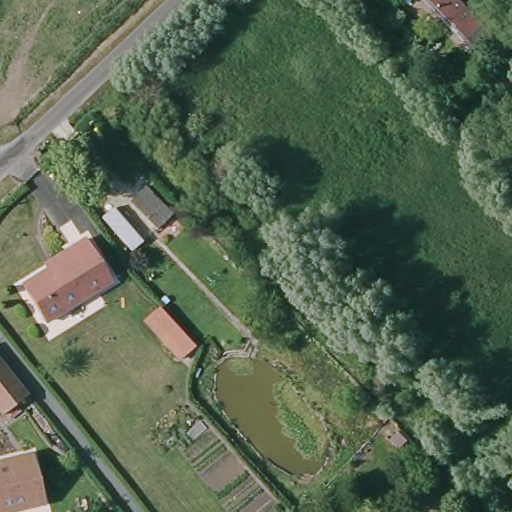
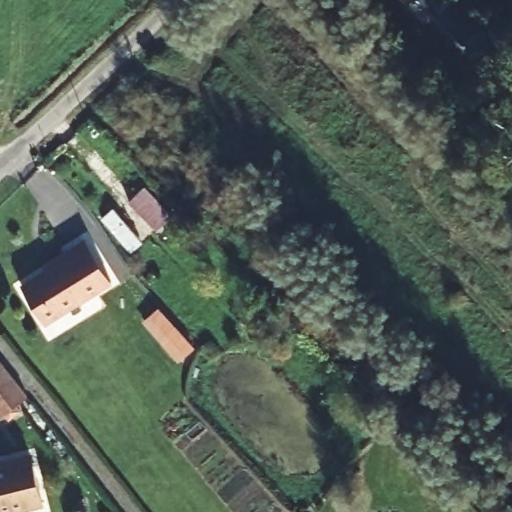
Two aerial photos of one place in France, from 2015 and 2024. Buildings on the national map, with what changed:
unchanged [(491,48),(476,61),(420,1),(421,0),(445,0),(491,48)]
unchanged [(145,191),(168,216),(153,230),(130,205),(145,191)]
unchanged [(108,284),(39,326),(17,291),(68,259),(64,253),(82,242),(108,284)]
unchanged [(181,363),(144,323),(161,305),(198,348),(181,363)]
unchanged [(26,397),(1,419),(0,418),(0,363),(26,397)]
unchanged [(0,512),(0,468),(26,463),(35,510),(24,512),(0,512)]

